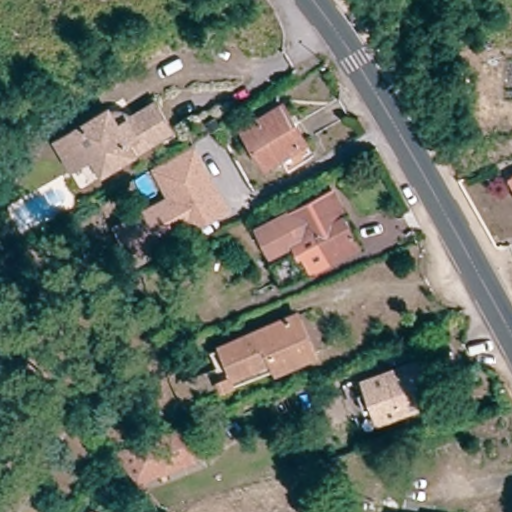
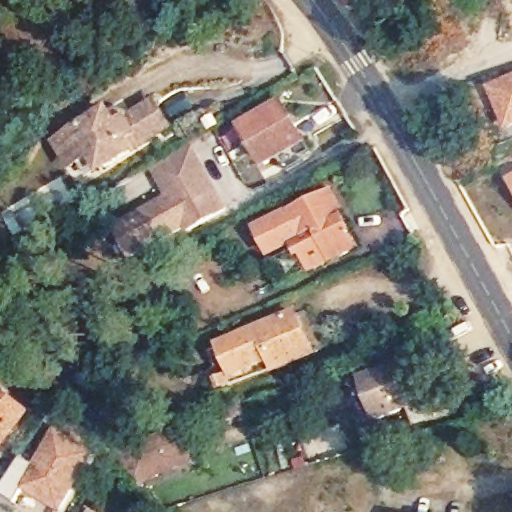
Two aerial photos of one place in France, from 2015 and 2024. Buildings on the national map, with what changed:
new [(489,88),(512,78),(512,131),(509,132),(489,88)]
unchanged [(77,154),(69,158),(55,134),(105,102),(108,105),(115,103),(122,104),(125,109),(151,94),(166,120),(99,161),(86,169),(77,154)]
unchanged [(305,133),(314,147),(287,163),(279,149),(265,157),(244,122),(282,99),(303,133),(304,132),(305,133)]
unchanged [(119,235),(130,228),(172,202),(153,170),(190,148),(229,212),(192,234),(189,230),(147,256),(136,263),(119,235)]
unchanged [(512,175),(512,180),(509,176),(512,175)]
unchanged [(331,265),(314,234),(302,241),(300,239),(270,255),(256,229),(267,224),(332,190),(363,250),(331,265)]
unchanged [(313,275),(284,289),(272,266),(302,252),(313,275)]
unchanged [(298,306),(315,345),(278,362),(273,351),(236,367),(224,339),(298,306)]
unchanged [(236,367),(273,351),(278,362),(229,384),(212,345),(224,339),(236,367)]
unchanged [(406,354),(420,391),(413,394),(383,405),(369,367),(399,356),(406,354)]
new [(36,413),(5,455),(0,451),(0,386),(36,413)]
unchanged [(137,485),(115,453),(183,426),(199,462),(137,485)]
new [(95,451),(65,512),(61,512),(23,491),(55,429),(95,451)]
unchanged [(387,493),(392,465),(407,468),(402,496),(387,493)]
unchanged [(94,507),(102,512),(91,512),(94,507)]

